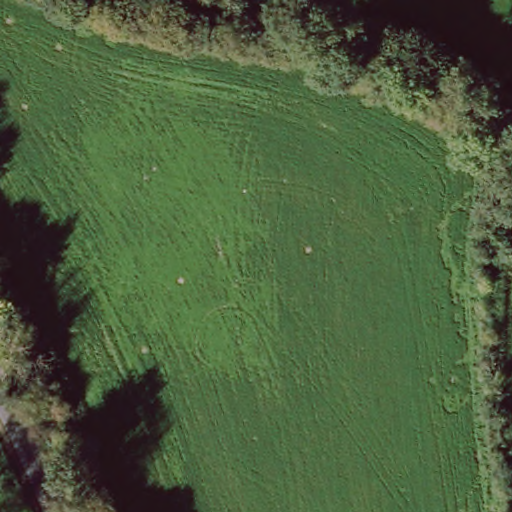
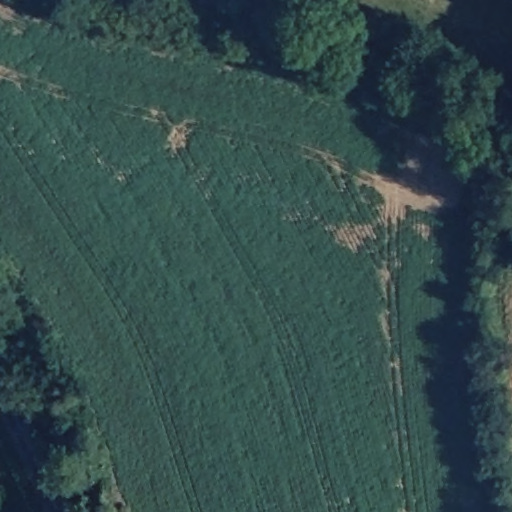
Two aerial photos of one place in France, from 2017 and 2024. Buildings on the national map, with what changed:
unchanged [(502,208),(512,209),(512,233),(500,231),(502,208)]

